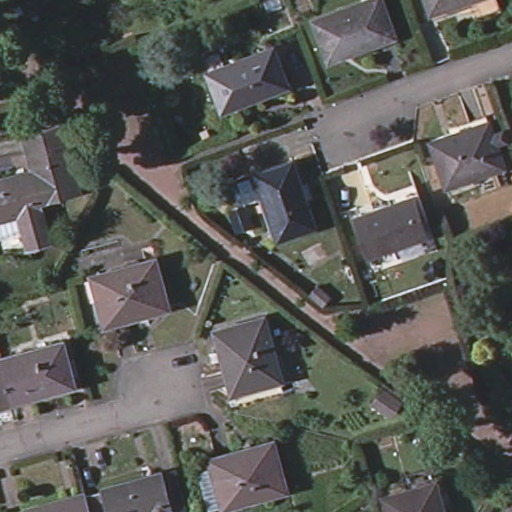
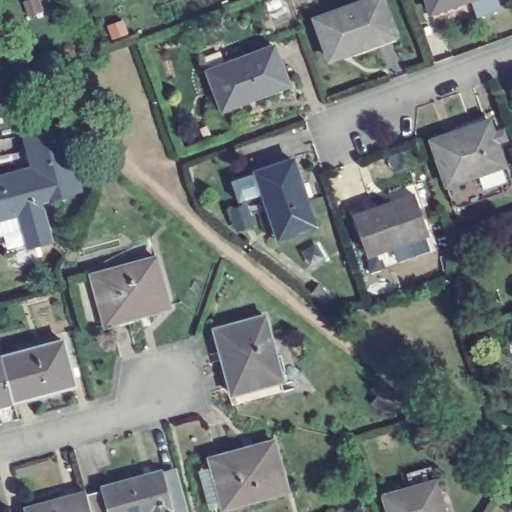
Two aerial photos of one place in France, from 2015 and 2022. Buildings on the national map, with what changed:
unchanged [(318,24),(380,0),(383,0),(397,37),(329,61),(318,24)]
unchanged [(427,0),(475,0),(433,16),(427,0)]
unchanged [(222,109),(209,71),(277,47),(290,85),(222,109)]
unchanged [(450,185),(434,138),(493,118),(510,165),(450,185)]
unchanged [(80,195),(43,206),(33,171),(24,138),(62,127),(80,195)]
unchanged [(279,241),(258,174),(294,162),(315,230),(279,241)]
unchanged [(53,242),(25,248),(17,213),(0,218),(0,180),(33,171),(43,206),(53,242)]
unchanged [(375,257),(360,217),(417,196),(431,236),(375,257)]
unchanged [(108,326),(94,278),(157,261),(171,308),(108,326)]
unchanged [(315,302),(321,292),(335,302),(328,312),(315,302)]
unchanged [(285,382),(236,397),(218,333),(267,318),(285,382)]
unchanged [(5,358),(65,342),(77,387),(17,403),(5,358)]
unchanged [(0,409),(0,359),(5,358),(17,403),(0,409)]
unchanged [(507,451),(512,443),(512,454),(507,451)]
unchanged [(212,464),(277,446),(290,494),(227,512),(225,512),(212,464)]
unchanged [(163,472),(178,467),(188,512),(92,512),(88,493),(163,472)]
unchanged [(387,503),(413,496),(408,481),(432,473),(437,489),(444,512),(389,512),(387,503)]
unchanged [(88,493),(92,512),(21,512),(88,493)]

